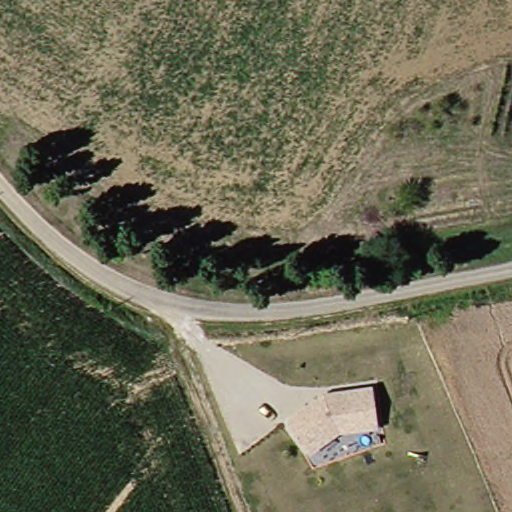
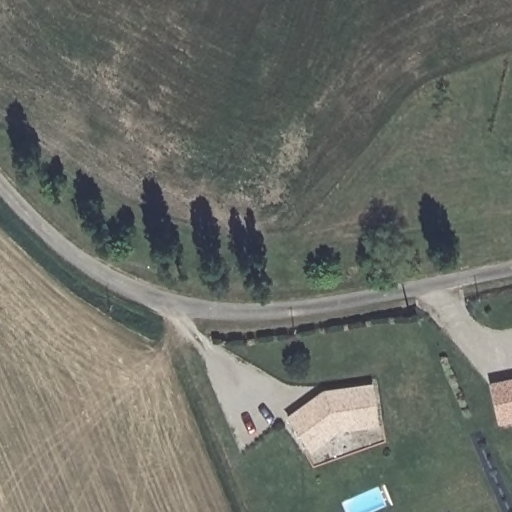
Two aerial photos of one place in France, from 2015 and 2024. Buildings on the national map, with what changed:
new [(512,379),(512,419),(500,422),(492,384),(512,379)]
unchanged [(374,422),(336,427),(310,449),(287,416),(323,389),(370,384),(374,422)]

